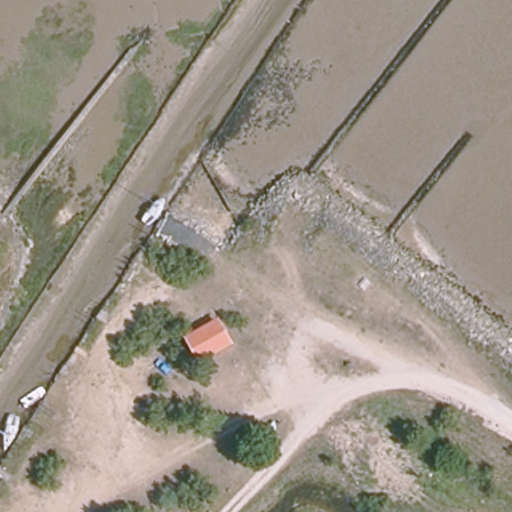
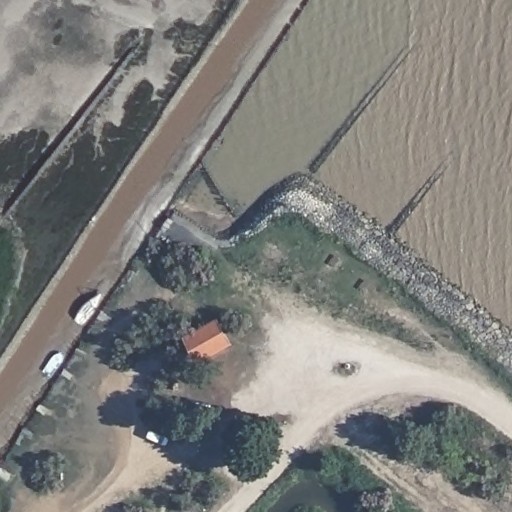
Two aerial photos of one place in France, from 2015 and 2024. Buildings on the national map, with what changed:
unchanged [(217,313),(232,346),(194,364),(181,330),(217,313)]

